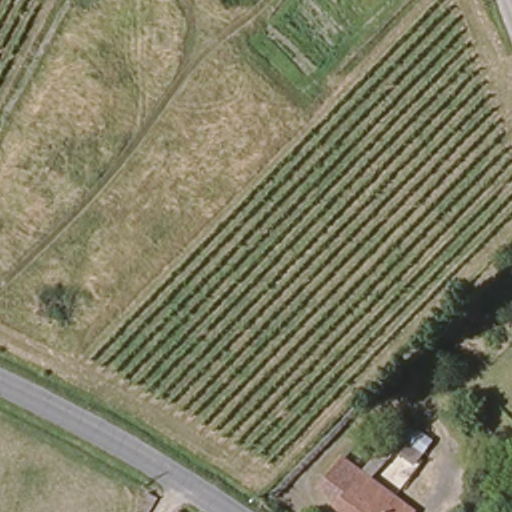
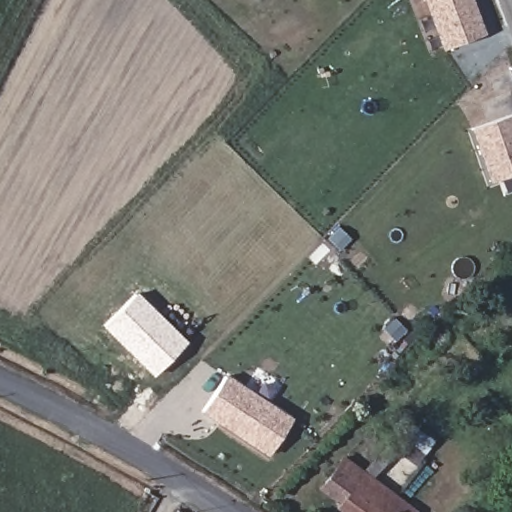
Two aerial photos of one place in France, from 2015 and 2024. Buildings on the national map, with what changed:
new [(423,0),(470,0),(483,37),(442,52),(423,0)]
new [(471,130),(512,115),(512,176),(490,184),(471,130)]
new [(153,377),(102,327),(136,292),(187,342),(153,377)]
new [(201,413),(227,375),(293,419),(268,457),(201,413)]
unchanged [(411,446),(420,452),(414,460),(405,454),(411,446)]
unchanged [(346,456),(351,461),(364,470),(415,508),(412,512),(348,512),(339,506),(342,501),(326,489),(323,487),(346,456)]

